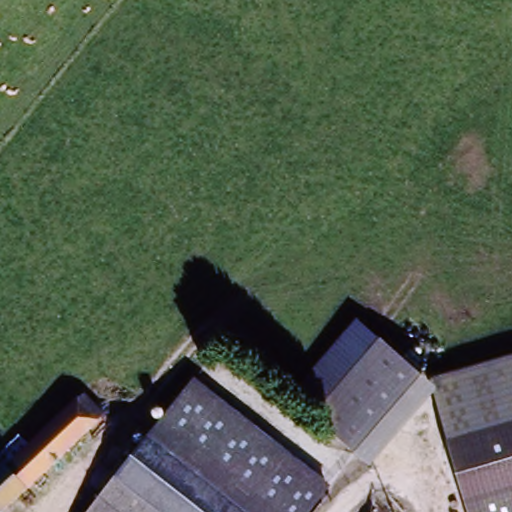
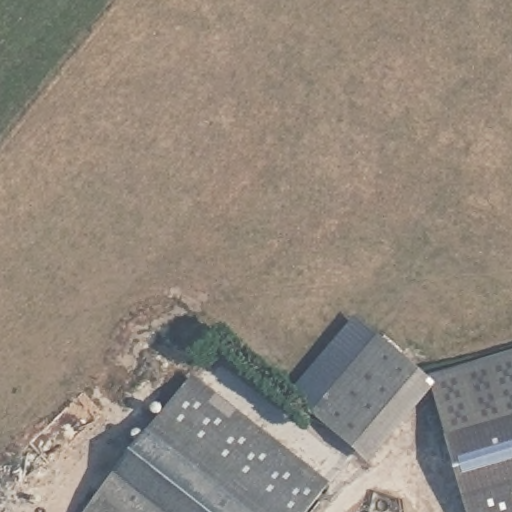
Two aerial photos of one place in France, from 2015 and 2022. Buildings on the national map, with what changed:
unchanged [(430,391),(371,467),(290,394),(354,320),(430,391)]
unchanged [(440,426),(430,391),(447,386),(512,366),(512,512),(467,512),(445,438),(440,426)]
unchanged [(333,487),(315,512),(93,512),(197,378),(333,487)]
unchanged [(110,418),(8,512),(0,512),(0,458),(3,462),(88,396),(110,418)]

